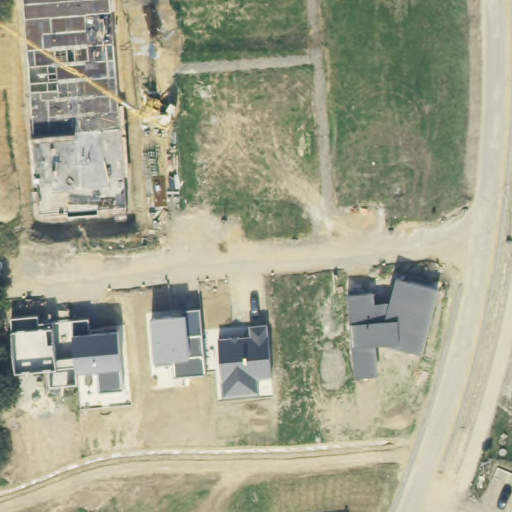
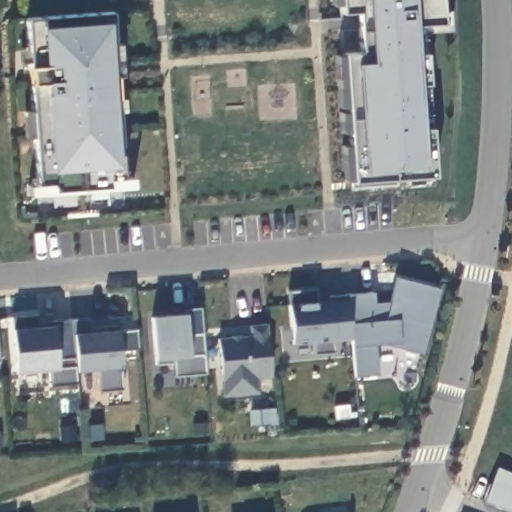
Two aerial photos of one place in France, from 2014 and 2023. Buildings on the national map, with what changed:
new [(448,9),(451,30),(422,32),(425,53),(427,83),(431,128),(434,176),(356,182),(345,182),(336,56),(345,54),(361,52),(357,10),(342,11),(341,3),(332,4),(332,0),(440,0),(440,9),(448,9)]
unchanged [(28,196),(28,184),(38,184),(34,137),(23,137),(21,110),(32,109),(32,83),(30,84),(29,66),(31,66),(25,19),(112,13),(114,44),(118,44),(122,75),(116,75),(117,99),(123,98),(125,111),(118,113),(125,178),(133,177),(134,187),(28,196)]
unchanged [(422,354),(385,344),(377,345),(377,375),(355,377),(353,348),(352,339),(335,340),(335,353),(315,354),(313,343),(294,345),(290,304),(288,290),(317,289),(317,297),(374,292),(376,303),(390,301),(397,278),(439,289),(422,354)]
unchanged [(190,357),(155,359),(150,314),(186,312),(201,309),(205,355),(190,357)]
unchanged [(77,371),(79,371),(78,384),(51,386),(51,370),(16,374),(12,329),(14,329),(12,318),(38,315),(39,324),(72,320),(77,371)]
unchanged [(100,393),(98,369),(77,371),(72,320),(91,319),(92,329),(117,327),(122,367),(125,391),(100,393)]
unchanged [(217,340),(251,338),(250,327),(267,325),(272,378),(260,379),(262,396),(222,399),(217,340)]
unchanged [(483,503),(497,467),(512,473),(512,512),(507,512),(483,503)]

